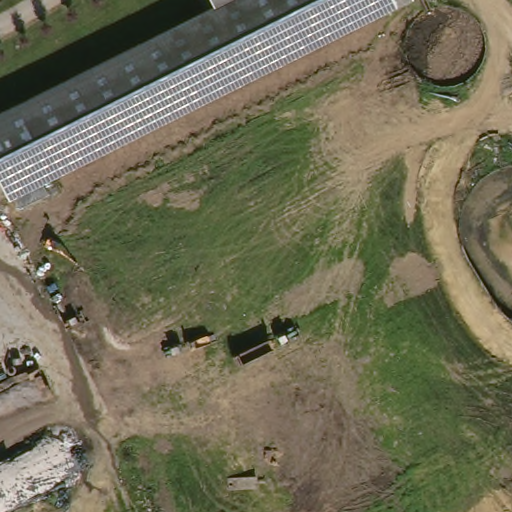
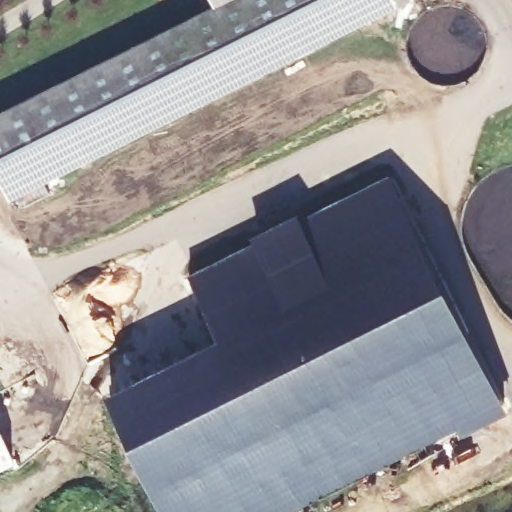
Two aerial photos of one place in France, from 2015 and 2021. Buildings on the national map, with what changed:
unchanged [(204,0),(409,0),(410,2),(308,54),(8,207),(0,192),(0,115),(209,10),(204,0)]
new [(107,396),(219,341),(186,277),(256,244),(253,237),(299,214),(303,221),(393,177),(508,412),(464,436),(460,428),(291,512),(164,512),(107,396)]

